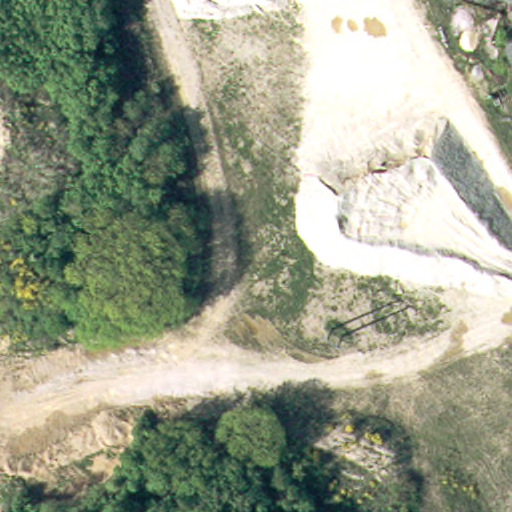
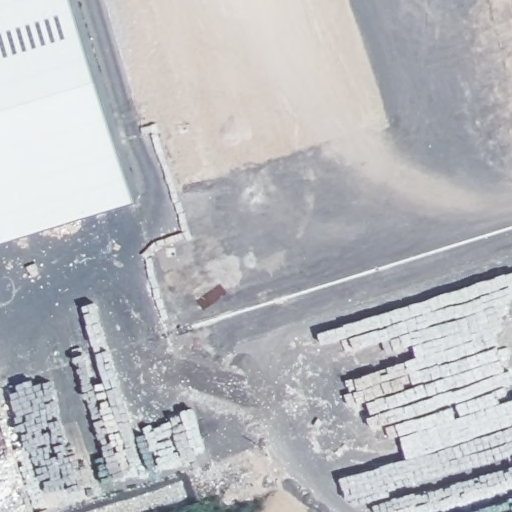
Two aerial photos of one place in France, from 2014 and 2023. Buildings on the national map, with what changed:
new [(0,210),(0,0),(72,0),(132,197),(0,210)]
unchanged [(510,51),(509,24),(504,9),(472,0),(512,0),(512,58),(510,51)]
new [(0,237),(0,210),(132,197),(0,237)]

